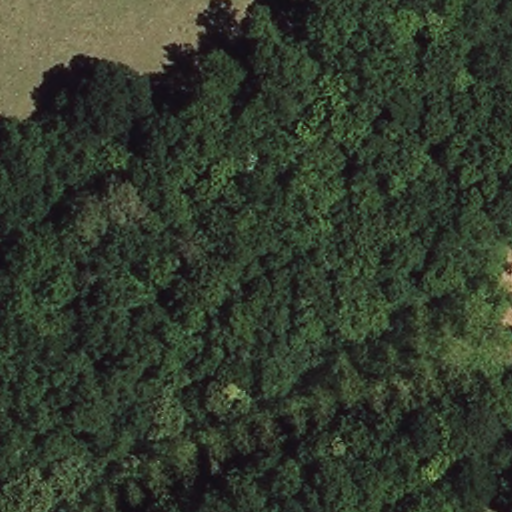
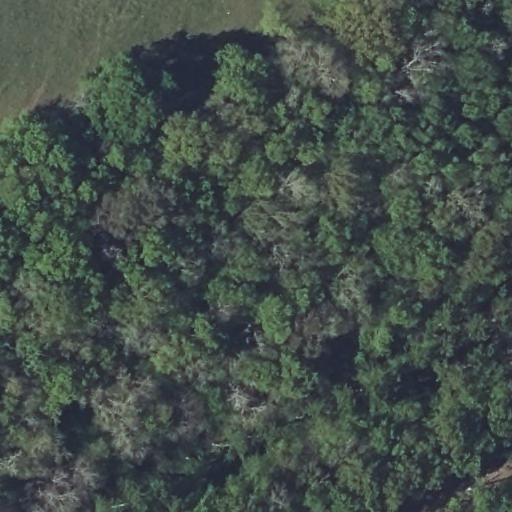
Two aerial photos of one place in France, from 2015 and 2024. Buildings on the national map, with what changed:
[]

